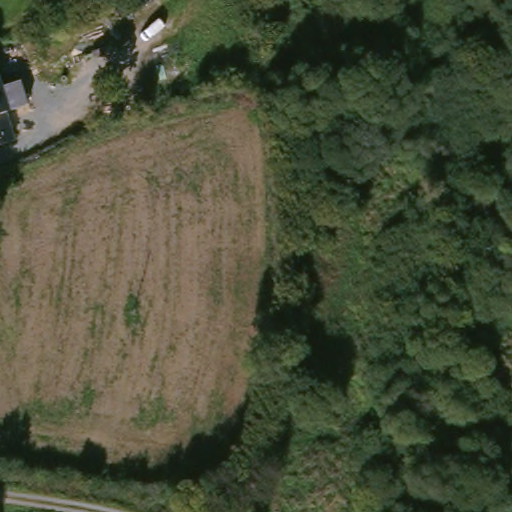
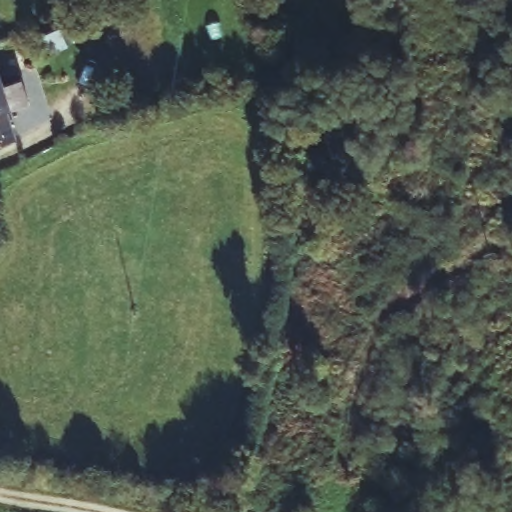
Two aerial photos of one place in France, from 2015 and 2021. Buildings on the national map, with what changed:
unchanged [(0,153),(0,149),(1,152),(0,153)]

